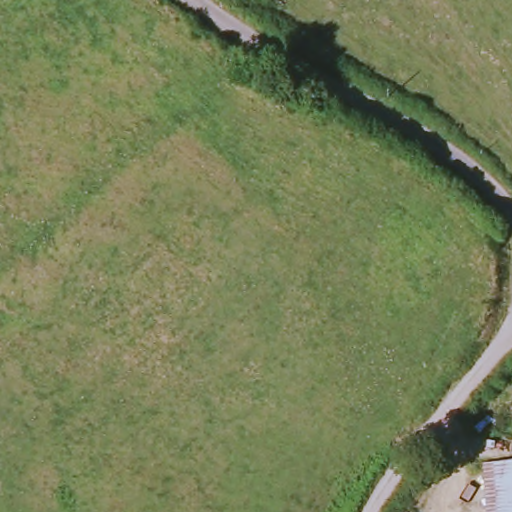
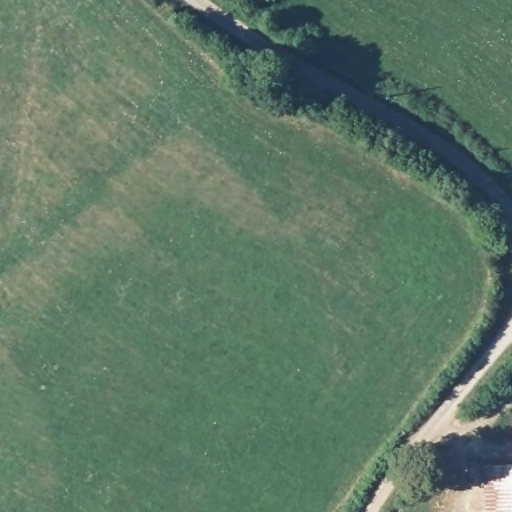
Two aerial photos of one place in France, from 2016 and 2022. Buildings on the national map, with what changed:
unchanged [(512,464),(512,512),(495,512),(492,465),(512,464)]

